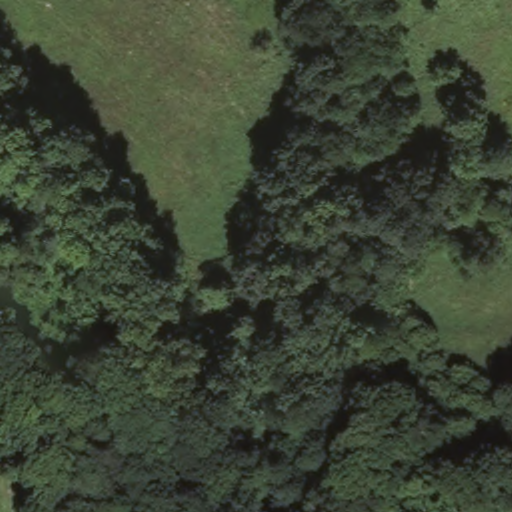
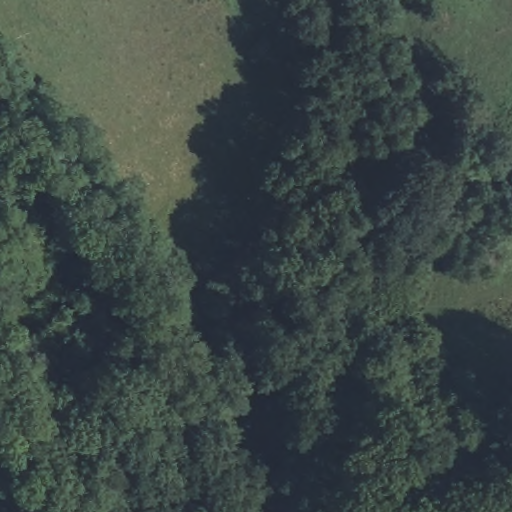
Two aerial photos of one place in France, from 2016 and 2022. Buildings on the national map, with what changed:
[]

